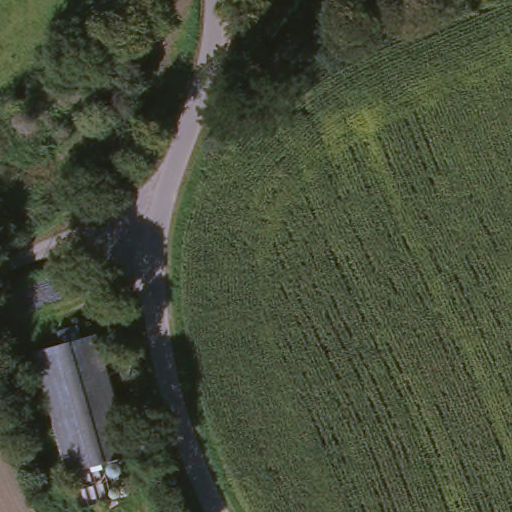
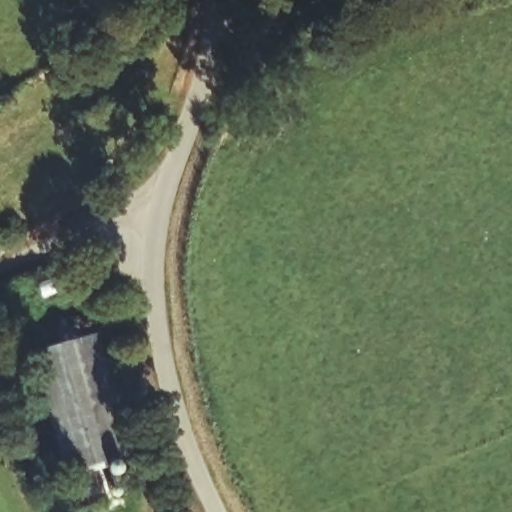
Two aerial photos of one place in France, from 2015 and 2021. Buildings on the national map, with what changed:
unchanged [(29,351),(88,332),(118,437),(122,450),(112,452),(64,466),(29,351)]

